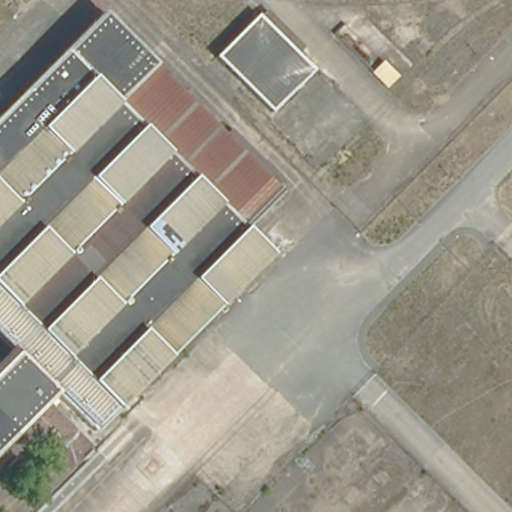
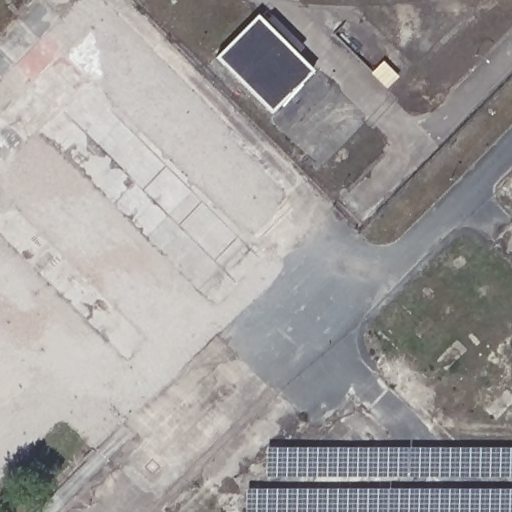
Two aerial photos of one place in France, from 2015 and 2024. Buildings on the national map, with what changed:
demolished [(103,15),(284,194),(246,232),(269,256),(121,411),(80,370),(0,451),(0,370),(15,355),(0,340),(0,118),(103,15)]
unchanged [(313,70),(274,110),(220,55),(258,16),(313,70)]

